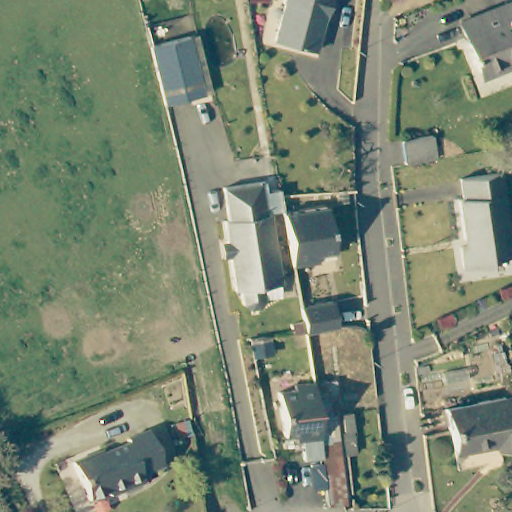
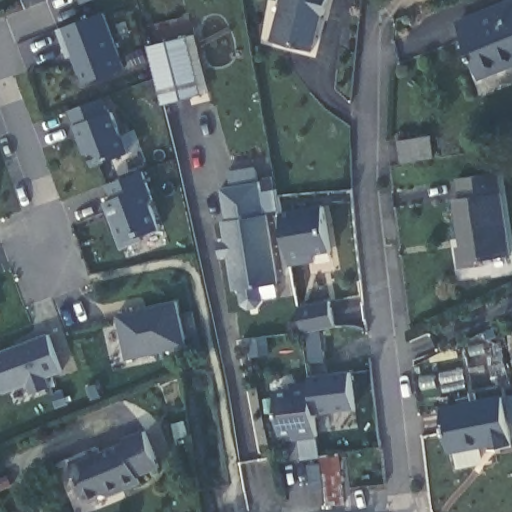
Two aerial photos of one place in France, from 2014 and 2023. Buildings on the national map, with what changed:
new [(81,0),(94,0),(83,4),(81,0)]
unchanged [(286,9),(281,7),(283,0),(335,0),(330,18),(326,21),(317,57),(277,46),(286,9)]
unchanged [(479,72),(462,22),(512,5),(512,61),(479,72)]
new [(84,84),(63,29),(106,11),(126,68),(84,84)]
unchanged [(193,35),(205,97),(165,105),(152,47),(151,46),(193,35)]
new [(131,155),(96,166),(91,152),(87,153),(70,110),(105,97),(109,112),(116,112),(131,155)]
unchanged [(404,164),(399,145),(430,139),(434,159),(404,164)]
new [(156,199),(154,203),(163,229),(143,236),(145,241),(125,249),(106,202),(115,197),(109,185),(146,170),(156,199)]
unchanged [(511,257),(493,258),(494,266),(463,271),(459,248),(467,247),(466,239),(461,240),(456,201),(461,200),(458,181),(500,174),(511,257)]
unchanged [(269,226),(273,225),(284,295),(269,297),(272,313),(268,317),(267,319),(255,321),(250,317),(248,317),(246,302),(241,303),(228,232),(233,231),(228,201),(263,195),(269,226)]
unchanged [(328,208),(336,254),(311,258),(313,265),(294,267),(285,216),(328,208)]
unchanged [(306,298),(337,293),(341,320),(310,327),(306,298)]
new [(188,347),(129,360),(117,316),(178,301),(188,347)]
new [(50,378),(52,387),(34,394),(31,385),(6,393),(0,379),(0,351),(51,333),(64,372),(50,378)]
unchanged [(326,507),(322,479),(321,467),(312,376),(327,373),(336,472),(337,477),(340,507),(326,507)]
unchanged [(495,450),(494,442),(454,450),(446,407),(504,397),(512,443),(512,446),(495,450)]
unchanged [(319,467),(321,481),(302,482),(300,458),(299,456),(293,457),(282,457),(277,415),(294,413),(294,408),(313,406),(319,467)]
unchanged [(120,447),(121,442),(140,433),(161,476),(138,486),(140,491),(109,506),(96,497),(85,502),(68,467),(86,460),(88,462),(92,460),(120,447)]

